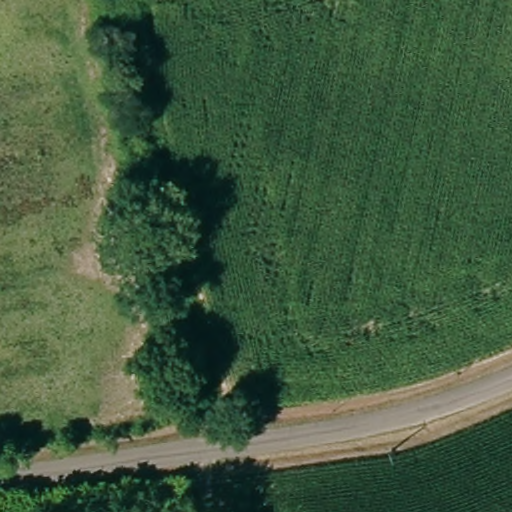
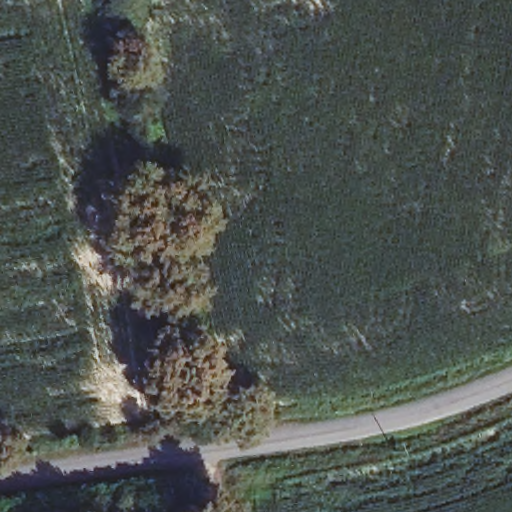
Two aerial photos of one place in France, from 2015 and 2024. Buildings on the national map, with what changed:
[]

